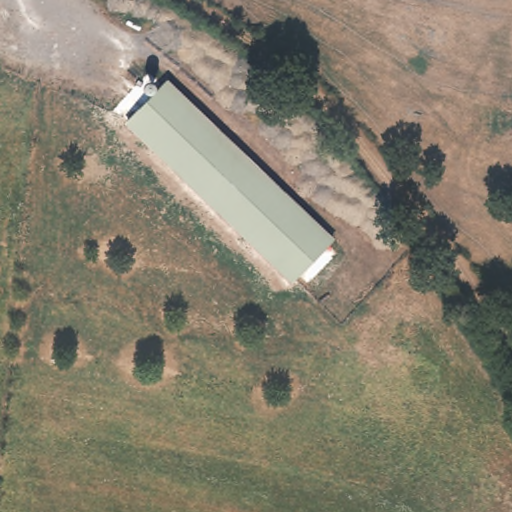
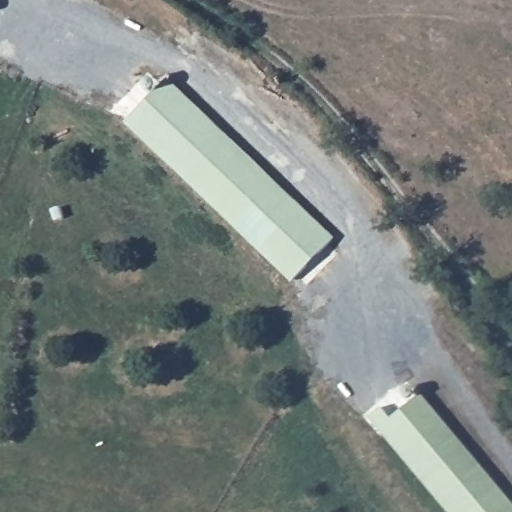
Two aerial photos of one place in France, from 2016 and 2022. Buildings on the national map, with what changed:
unchanged [(127,124),(159,91),(322,249),(289,277),(127,124)]
new [(391,419),(419,395),(512,505),(512,512),(446,512),(368,418),(380,407),(391,419)]

